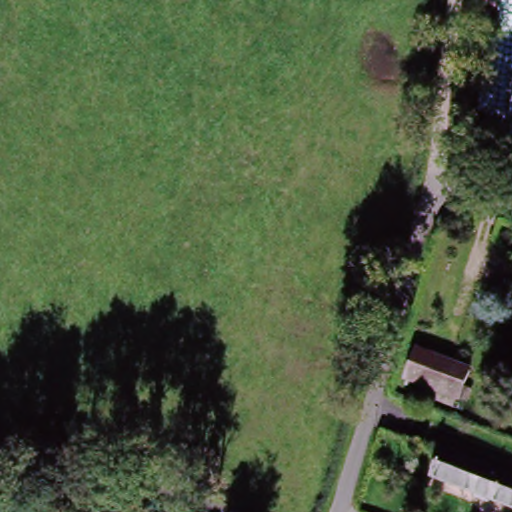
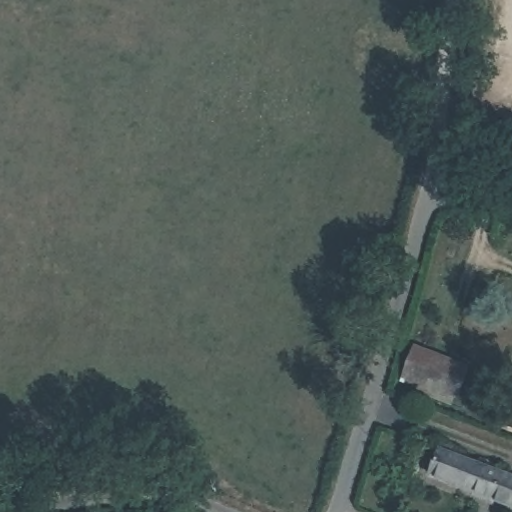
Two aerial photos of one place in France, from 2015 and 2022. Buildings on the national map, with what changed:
unchanged [(420,348),(472,368),(461,399),(408,378),(420,348)]
unchanged [(440,449),(512,475),(512,503),(431,473),(440,449)]

